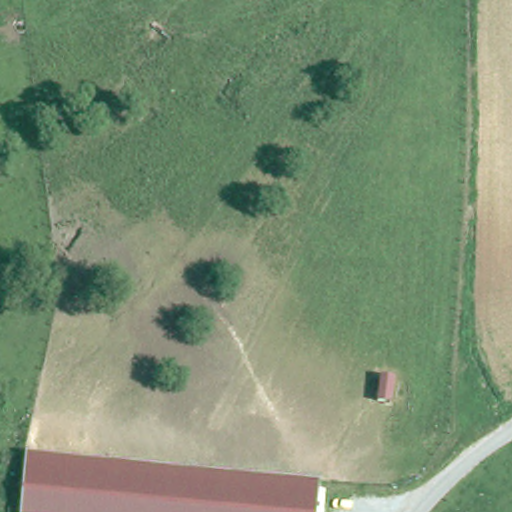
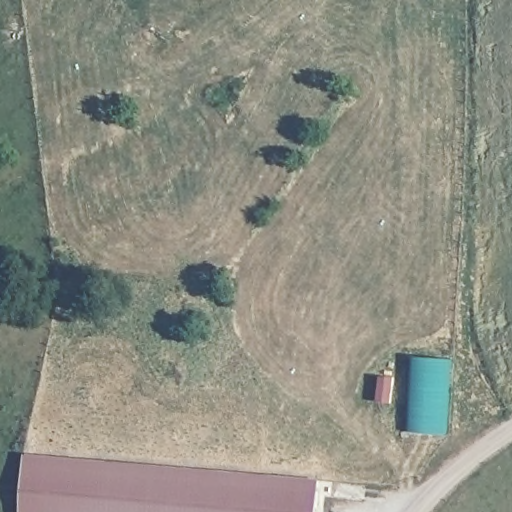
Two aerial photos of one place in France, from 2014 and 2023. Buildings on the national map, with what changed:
new [(451,359),(446,432),(407,430),(412,356),(451,359)]
unchanged [(380,375),(393,376),(391,402),(377,401),(380,375)]
unchanged [(21,512),(25,456),(320,482),(316,512),(21,512)]

